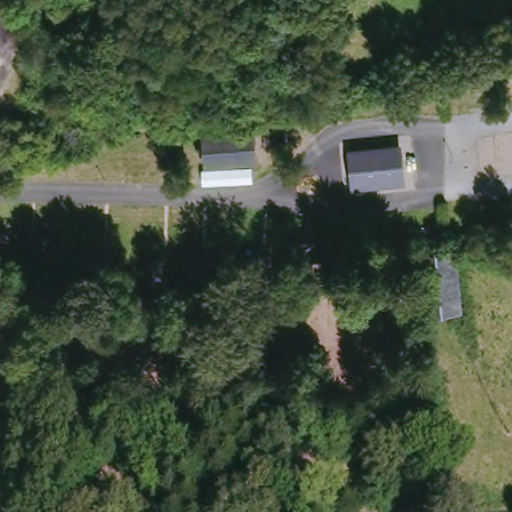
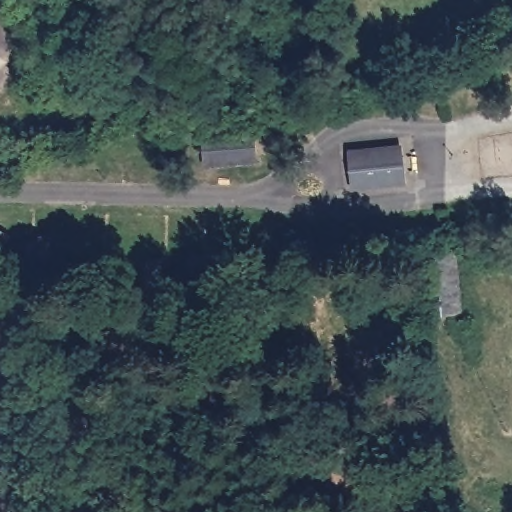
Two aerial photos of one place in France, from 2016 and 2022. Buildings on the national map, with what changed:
unchanged [(251,130),(251,161),(201,160),(201,129),(251,130)]
unchanged [(281,130),(281,146),(262,145),(262,130),(281,130)]
unchanged [(405,146),(407,180),(357,182),(356,149),(405,146)]
unchanged [(36,249),(13,247),(15,233),(37,235),(36,249)]
unchanged [(286,250),(287,240),(299,236),(307,254),(283,263),(279,252),(286,250)]
unchanged [(86,269),(72,252),(84,243),(97,260),(86,269)]
unchanged [(185,275),(172,257),(185,250),(197,267),(185,275)]
unchanged [(236,258),(242,251),(256,253),(255,272),(229,270),(230,258),(236,258)]
unchanged [(454,251),(465,307),(434,313),(423,256),(454,251)]
unchanged [(149,259),(148,271),(132,270),(134,257),(149,259)]

